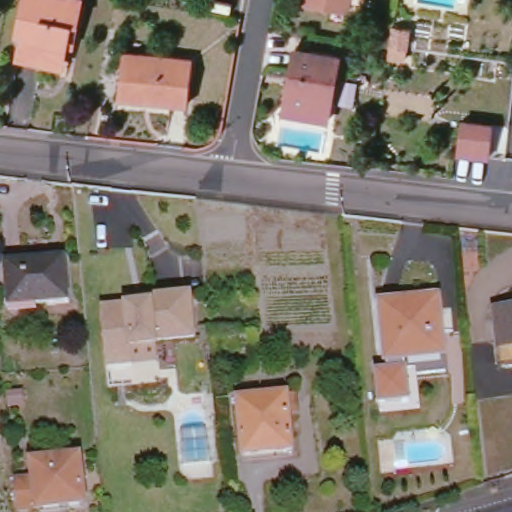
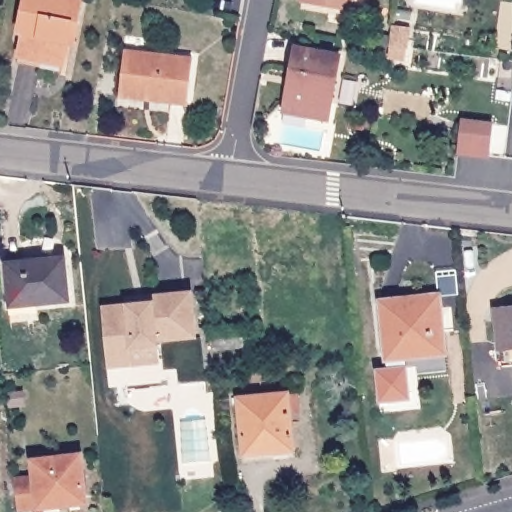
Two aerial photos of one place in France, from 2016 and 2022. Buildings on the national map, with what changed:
unchanged [(40,69),(41,61),(18,56),(23,34),(18,34),(25,0),(81,0),(74,37),(69,36),(67,48),(61,73),(40,69)]
unchanged [(305,0),(353,0),(351,13),(313,6),(304,5),(305,0)]
unchanged [(386,60),(388,47),(391,28),(407,31),(405,49),(402,63),(386,60)]
unchanged [(284,105),(294,47),(338,54),(327,121),(307,118),(283,113),(284,105)]
unchanged [(121,92),(125,53),(194,61),(189,107),(152,103),(120,99),(121,92)]
unchanged [(478,122),(494,124),(490,156),(473,154),(458,152),(462,120),(478,122)]
unchanged [(37,304),(10,307),(6,268),(65,262),(69,306),(37,309),(37,304)]
unchanged [(162,342),(162,346),(136,349),(138,365),(113,368),(107,307),(157,303),(157,296),(196,293),(201,339),(162,342)]
unchanged [(383,368),(393,367),(387,303),(443,298),(449,361),(412,365),(415,398),(386,401),(383,368)]
unchanged [(512,304),(512,359),(500,360),(495,306),(512,304)]
unchanged [(8,393),(22,391),(25,406),(10,408),(8,393)]
unchanged [(239,399),(288,394),(294,452),(245,456),(239,399)]
unchanged [(19,480),(40,478),(38,461),(84,455),(90,503),(23,511),(19,480)]

